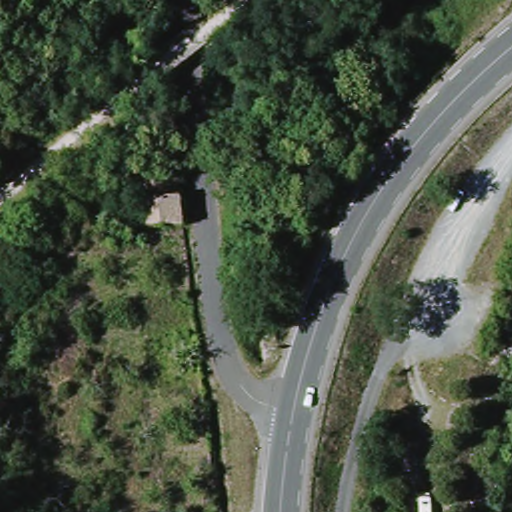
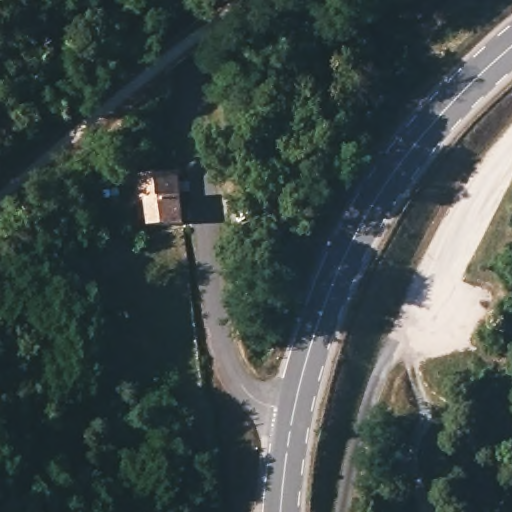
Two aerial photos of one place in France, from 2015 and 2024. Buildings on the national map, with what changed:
unchanged [(181,229),(151,230),(147,222),(133,222),(133,184),(147,183),(146,161),(156,161),(156,148),(170,147),(181,229)]
unchanged [(115,192),(121,198),(115,205),(107,198),(115,192)]

